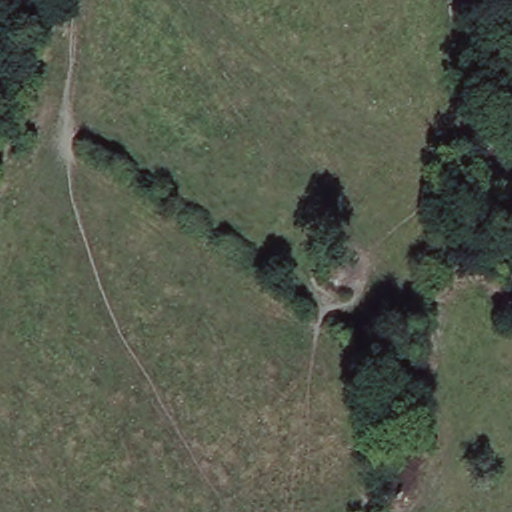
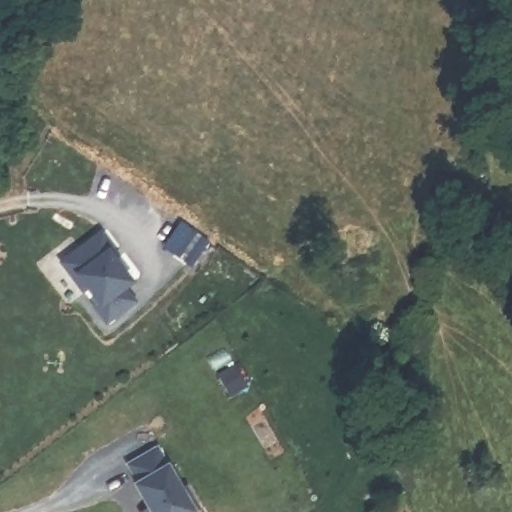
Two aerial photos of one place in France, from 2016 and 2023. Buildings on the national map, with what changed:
new [(73,279),(61,263),(97,234),(110,249),(115,256),(111,259),(129,281),(122,287),(132,300),(106,321),(95,307),(100,303),(85,286),(81,290),(73,279)]
new [(155,450),(179,491),(184,487),(199,512),(198,512),(142,512),(150,507),(143,496),(140,498),(133,487),(136,485),(125,467),(155,450)]

